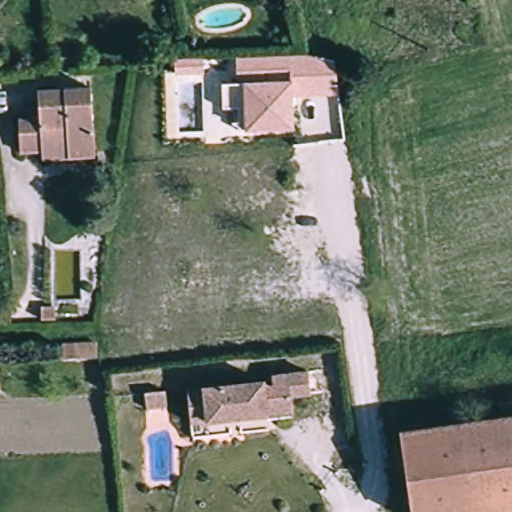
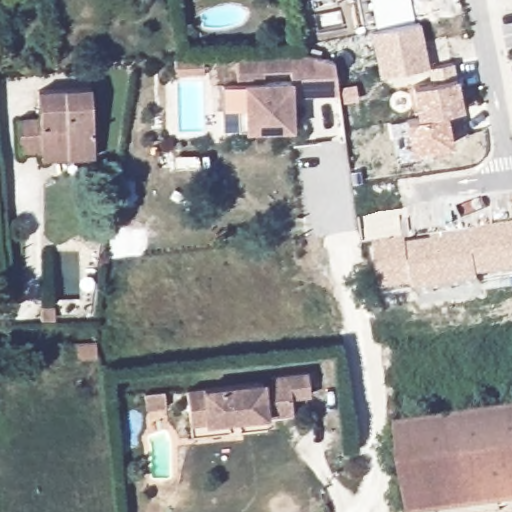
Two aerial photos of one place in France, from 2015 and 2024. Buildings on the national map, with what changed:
new [(370,0),(409,0),(414,21),(375,28),(370,0)]
new [(417,114),(411,84),(429,81),(427,66),(381,76),(371,29),(375,28),(414,21),(419,20),(429,65),(453,62),(456,76),(462,108),(446,111),(452,143),(411,150),(404,118),(417,114)]
unchanged [(309,53),(339,73),(339,95),(294,96),(294,128),(239,128),(239,108),(223,108),(221,82),(238,82),(236,56),(309,53)]
unchanged [(204,57),(204,73),(174,74),(174,58),(204,57)]
unchanged [(90,87),(94,156),(41,159),(41,151),(19,153),(18,118),(39,117),(38,90),(90,87)]
new [(512,228),(512,275),(481,280),(481,286),(414,296),(414,292),(386,294),(378,248),(410,243),(412,248),(475,239),(473,234),(512,228)]
unchanged [(40,307),(54,307),(54,319),(41,319),(40,307)]
unchanged [(95,343),(96,356),(63,358),(62,344),(95,343)]
unchanged [(265,410),(189,418),(186,384),(263,376),(263,380),(273,379),(271,370),(306,367),(309,388),(291,390),(293,407),(265,410)]
unchanged [(163,392),(164,404),(145,406),(143,394),(163,392)]
unchanged [(484,512),(411,512),(399,431),(512,415),(512,508),(484,512)]

